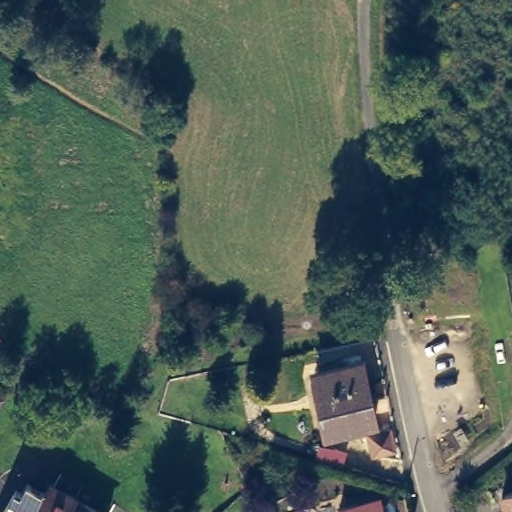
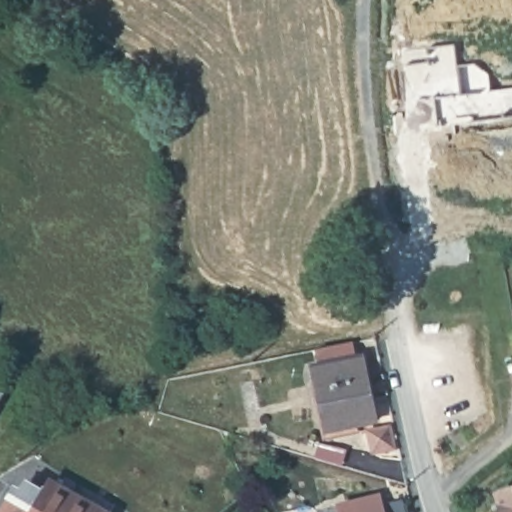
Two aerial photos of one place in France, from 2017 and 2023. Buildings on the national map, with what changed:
unchanged [(3,356),(0,364),(0,354),(3,356)]
unchanged [(375,420),(331,431),(314,366),(357,355),(375,420)]
unchanged [(6,396),(0,406),(0,392),(6,396)]
unchanged [(503,482),(512,479),(512,510),(503,482)]
unchanged [(333,501),(373,491),(379,512),(336,512),(333,501)]
unchanged [(42,510),(52,492),(89,512),(12,512),(20,497),(42,510)]

